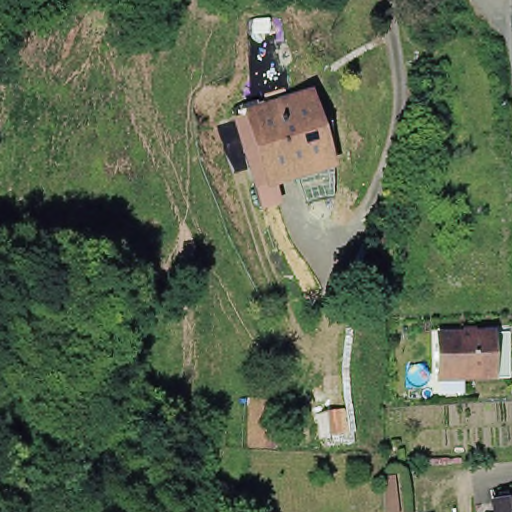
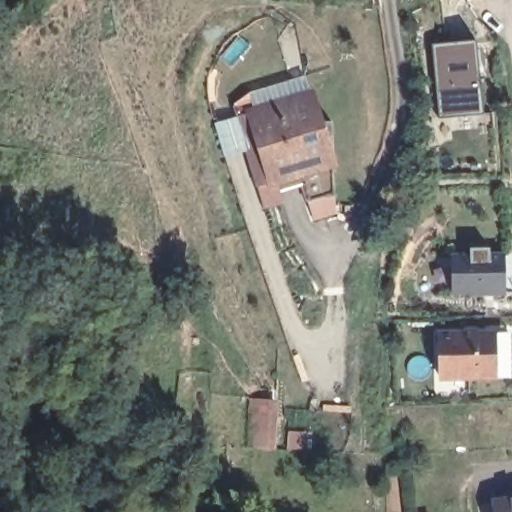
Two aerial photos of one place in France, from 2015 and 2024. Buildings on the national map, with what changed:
new [(483,116),(439,120),(431,44),(476,40),(483,116)]
unchanged [(325,167),(278,182),(262,135),(262,134),(270,130),(265,114),(278,109),(305,100),(313,97),(322,125),(312,129),(316,140),(325,167)]
new [(313,220),(303,179),(334,170),(335,215),(313,220)]
new [(505,296),(470,296),(470,294),(452,294),(451,253),(504,252),(505,296)]
unchanged [(490,376),(435,377),(435,334),(490,333),(505,333),(505,356),(505,376),(490,376)]
new [(275,450),(248,448),(251,400),(278,400),(275,450)]
unchanged [(512,505),(512,512),(494,512),(493,507),(512,505)]

